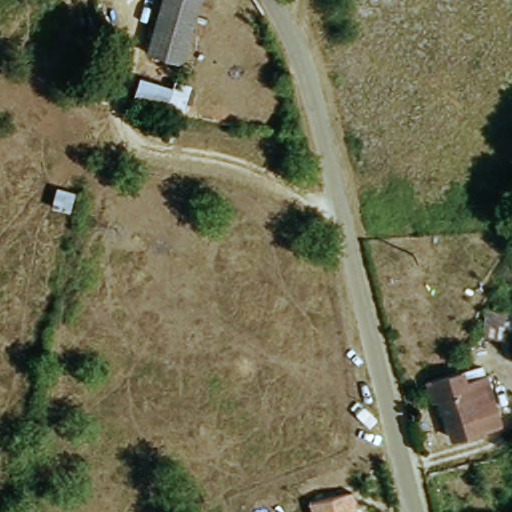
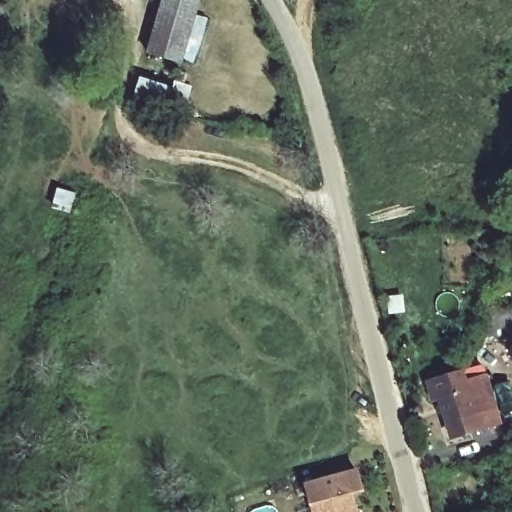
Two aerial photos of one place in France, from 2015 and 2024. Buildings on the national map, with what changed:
unchanged [(184,66),(151,58),(165,0),(200,0),(184,66)]
unchanged [(136,109),(144,79),(179,87),(181,80),(196,82),(186,121),(136,109)]
unchanged [(483,306),(512,313),(512,331),(511,340),(479,335),(483,306)]
unchanged [(444,400),(434,402),(429,382),(463,373),(465,382),(477,416),(451,424),(444,400)]
unchanged [(477,416),(465,382),(489,377),(504,426),(454,440),(451,424),(477,416)]
new [(351,494),(356,512),(311,512),(309,505),(303,482),(357,469),(364,490),(351,494)]
demolished [(309,512),(309,510),(348,498),(352,512),(309,512)]

